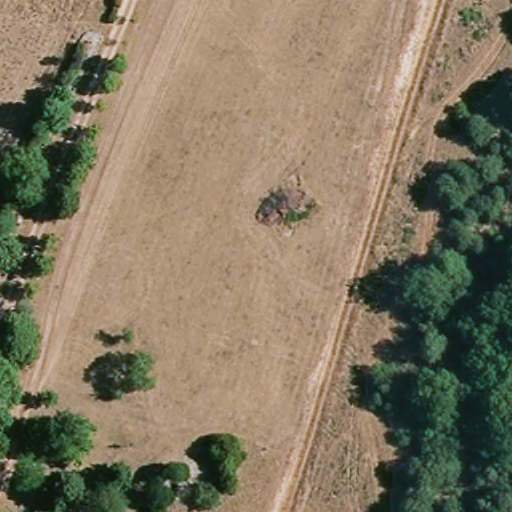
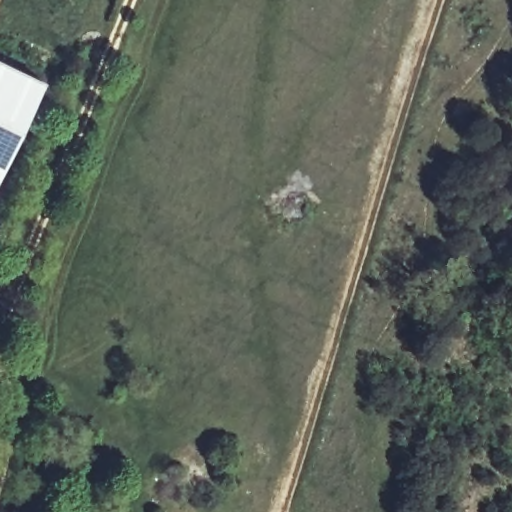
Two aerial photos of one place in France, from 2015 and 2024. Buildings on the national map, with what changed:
new [(44,83),(0,176),(0,62),(44,83)]

